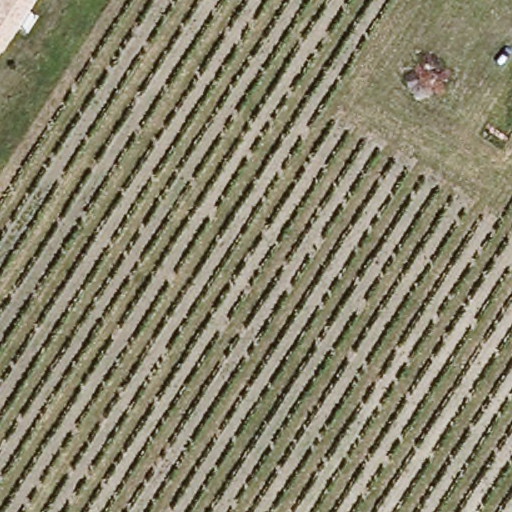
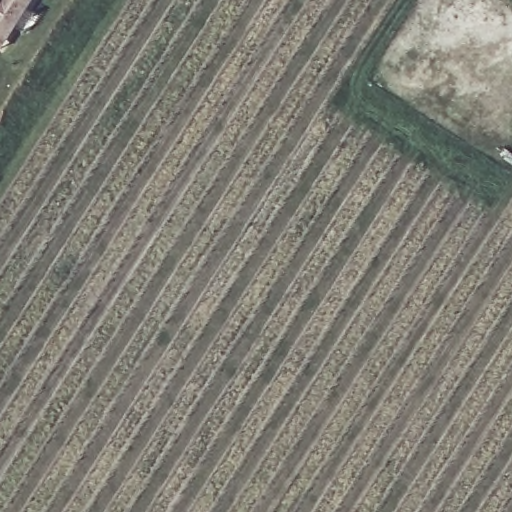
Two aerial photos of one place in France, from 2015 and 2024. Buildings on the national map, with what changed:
unchanged [(0,0),(39,0),(33,9),(44,16),(31,32),(23,25),(12,41),(4,51),(0,49),(0,0)]

